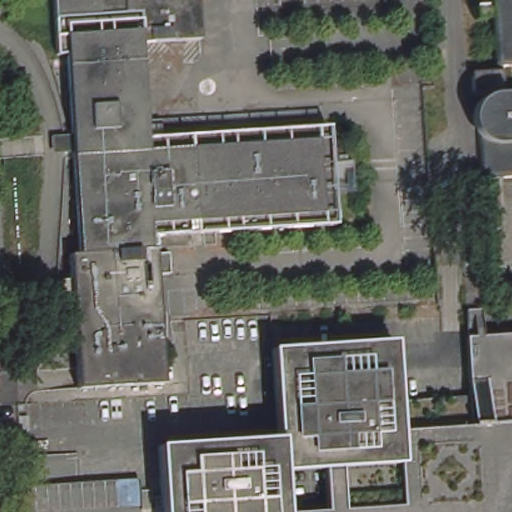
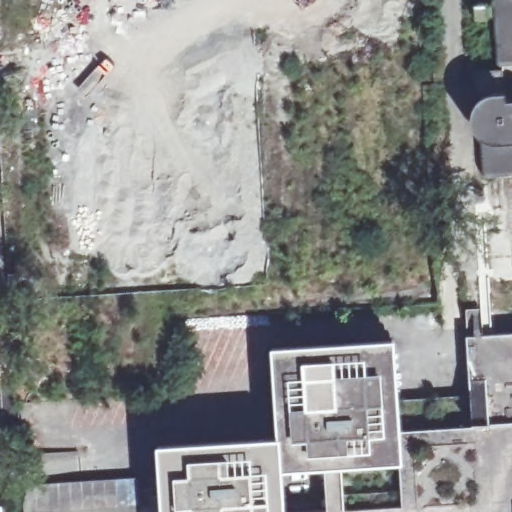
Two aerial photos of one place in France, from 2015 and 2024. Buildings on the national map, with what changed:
demolished [(160,320),(164,382),(79,388),(79,383),(78,368),(73,298),(69,298),(63,298),(60,299),(59,279),(62,279),(68,278),(72,278),(71,254),(81,252),(67,52),(58,54),(54,0),(199,0),(202,38),(157,41),(144,41),(140,42),(146,126),(147,137),(147,139),(149,138),(155,137),(164,137),(170,137),(192,135),(198,135),(207,135),(230,133),(252,131),(329,126),(331,161),(354,160),(355,187),(333,189),(335,223),(154,235),(156,252),(157,273),(160,315),(160,320)]
unchanged [(497,0),(497,14),(486,14),(486,1),(497,0)]
unchanged [(507,57),(503,0),(512,0),(512,61),(510,60),(507,57)]
unchanged [(489,112),(491,105),(496,100),(502,96),(512,95),(512,171),(499,172),(495,171),(493,170),(489,112)]
unchanged [(272,348),(395,340),(399,397),(472,393),(469,335),(512,332),(512,512),(296,512),(330,510),(327,468),(283,470),(285,512),(163,512),(160,446),(278,440),(272,348)]
unchanged [(24,503),(24,500),(25,498),(25,496),(26,493),(28,491),(29,490),(31,487),(33,486),(35,485),(38,484),(40,483),(43,483),(141,477),(143,512),(25,512),(24,503)]

